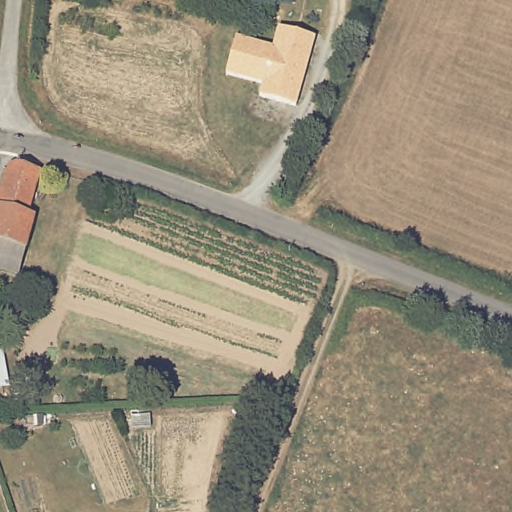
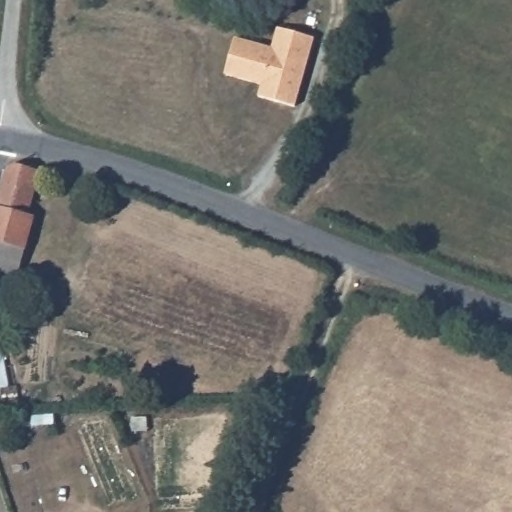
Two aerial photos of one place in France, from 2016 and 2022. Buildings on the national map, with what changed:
unchanged [(316,38),(295,108),(259,96),(262,85),(226,74),(237,37),(273,46),(279,28),(316,38)]
unchanged [(36,217),(26,251),(0,243),(0,194),(7,167),(16,165),(40,171),(28,214),(36,217)]
unchanged [(18,276),(0,271),(0,243),(26,251),(18,276)]
unchanged [(8,386),(17,385),(19,400),(0,402),(0,344),(4,344),(8,386)]

